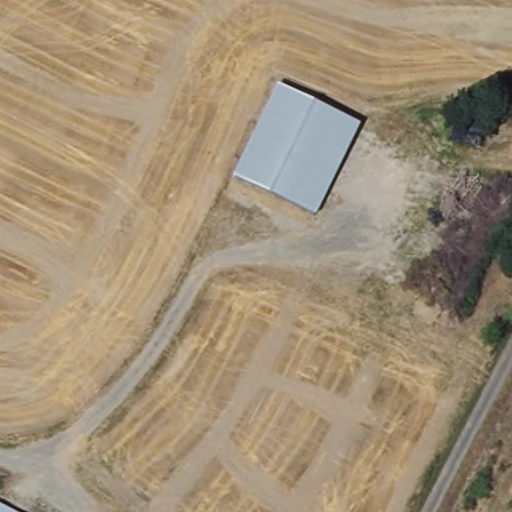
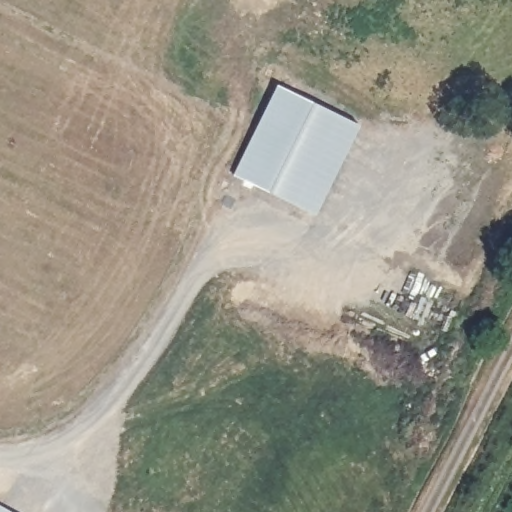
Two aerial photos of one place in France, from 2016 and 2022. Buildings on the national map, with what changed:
unchanged [(240,177),(283,91),(293,96),(321,110),(358,127),(315,214),(277,195),(263,188),(240,177)]
unchanged [(6,512),(0,512),(0,509),(6,512)]

